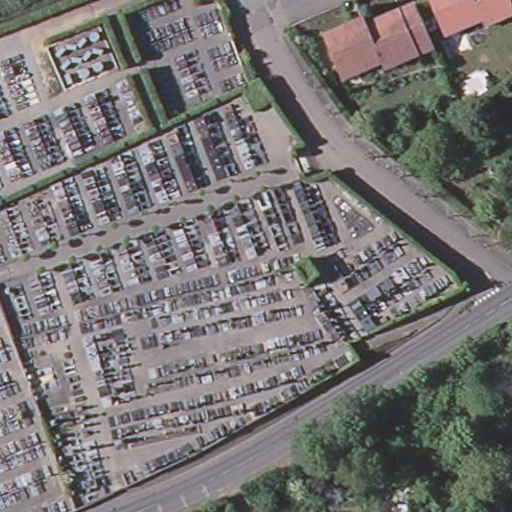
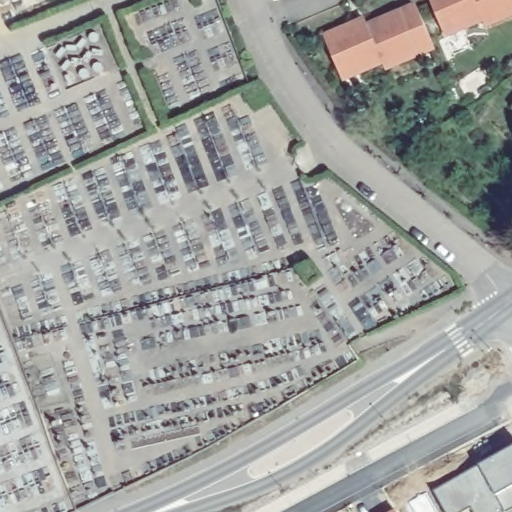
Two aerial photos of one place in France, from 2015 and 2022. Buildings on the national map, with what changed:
unchanged [(435,0),(512,0),(512,19),(488,29),(485,23),(467,30),(450,36),(447,30),(435,0)]
unchanged [(344,74),(330,38),(360,25),(363,30),(405,13),(407,16),(422,11),(439,51),(389,71),(386,65),(363,74),(347,80),(344,74)]
new [(474,511),(473,512),(446,512),(436,493),(458,481),(461,486),(484,472),(481,468),(512,452),(512,512),(474,512),(474,511)]

